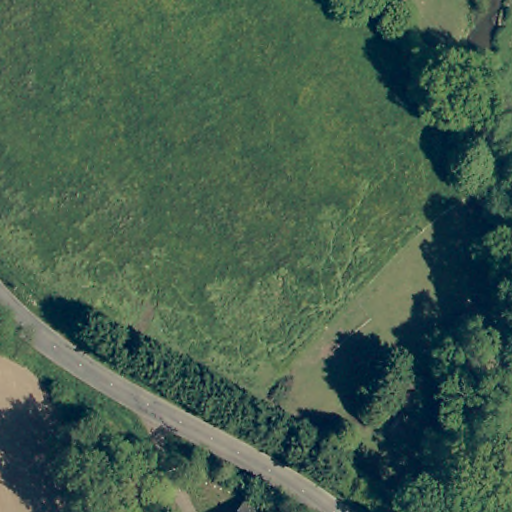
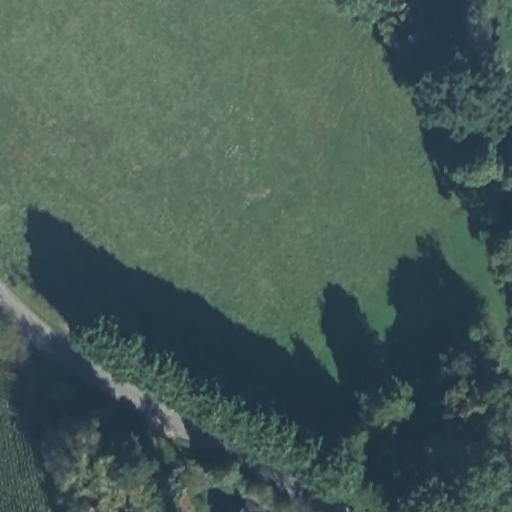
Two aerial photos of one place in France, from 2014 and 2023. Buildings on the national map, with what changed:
unchanged [(258,512),(237,512),(244,503),(258,512)]

